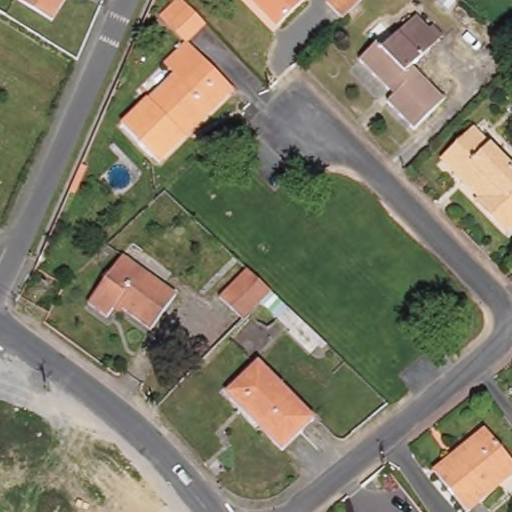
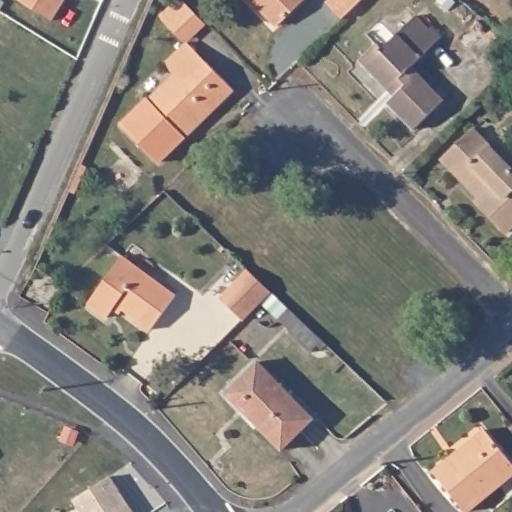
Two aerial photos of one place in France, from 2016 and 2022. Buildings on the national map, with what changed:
unchanged [(21,0),(64,0),(52,19),(21,0)]
unchanged [(254,0),(299,0),(276,23),(254,0)]
unchanged [(326,0),(360,0),(342,17),(326,0)]
unchanged [(185,4),(189,8),(199,19),(182,36),(167,22),(185,4)]
unchanged [(383,48),(417,15),(442,39),(416,64),(447,98),(416,127),(392,102),(398,95),(391,86),(388,89),(359,59),(378,42),(383,48)]
unchanged [(188,84),(212,60),(240,89),(163,162),(127,125),(179,75),(188,84)]
unchanged [(478,128),(512,163),(512,229),(482,199),(486,194),(448,156),(478,128)]
unchanged [(182,302),(150,332),(121,301),(108,313),(92,294),(136,254),(182,302)]
unchanged [(266,295),(252,309),(231,287),(253,265),(274,287),(323,338),(312,349),(290,327),(293,323),(266,295)]
unchanged [(254,409),(232,389),(257,362),(318,417),(286,449),(249,416),(254,409)]
unchanged [(512,456),(512,482),(475,512),(442,469),(491,429),(512,456)]
new [(112,477),(135,512),(82,512),(75,501),(112,477)]

